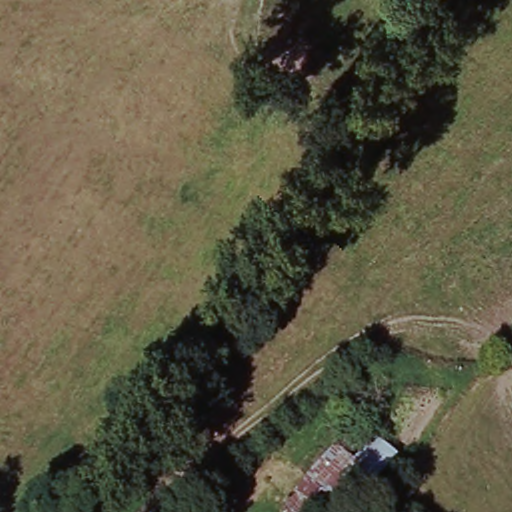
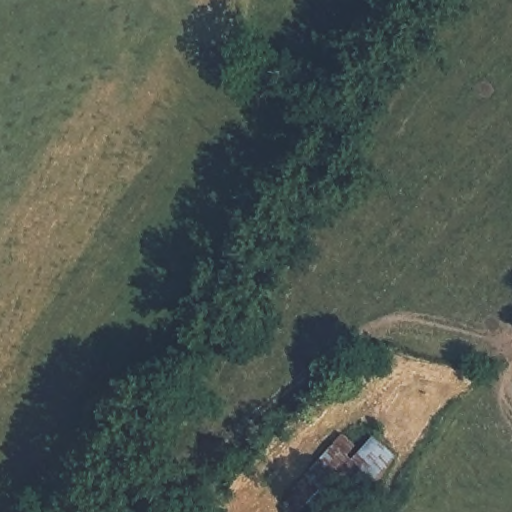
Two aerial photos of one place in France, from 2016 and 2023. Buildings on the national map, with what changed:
unchanged [(388,440),(379,451),(395,462),(357,509),(335,494),(345,485),(343,476),(375,432),(388,440)]

